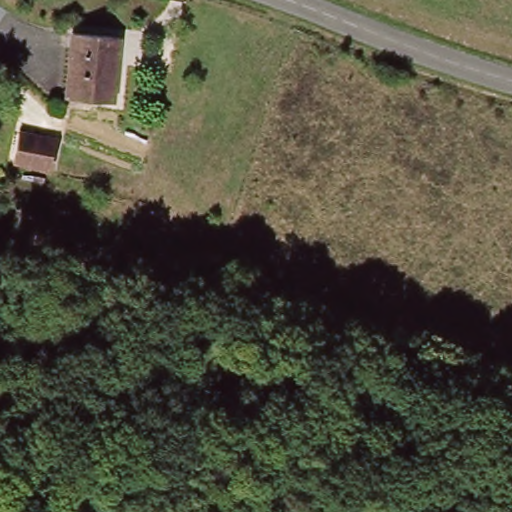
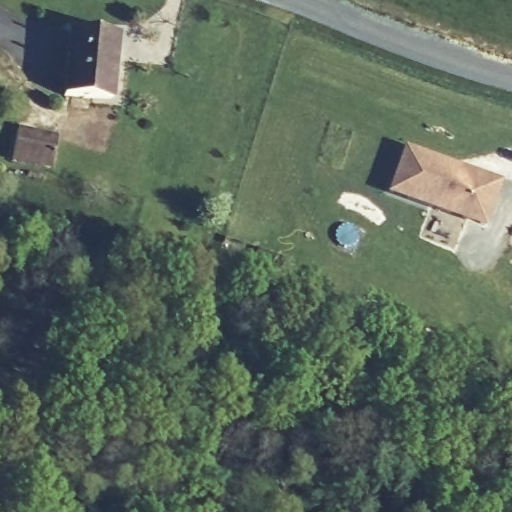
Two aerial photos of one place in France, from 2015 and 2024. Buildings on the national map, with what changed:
unchanged [(116,34),(110,99),(63,95),(69,29),(116,34)]
unchanged [(18,134),(49,139),(45,166),(14,161),(18,134)]
new [(502,181),(485,229),(387,194),(405,146),(502,181)]

